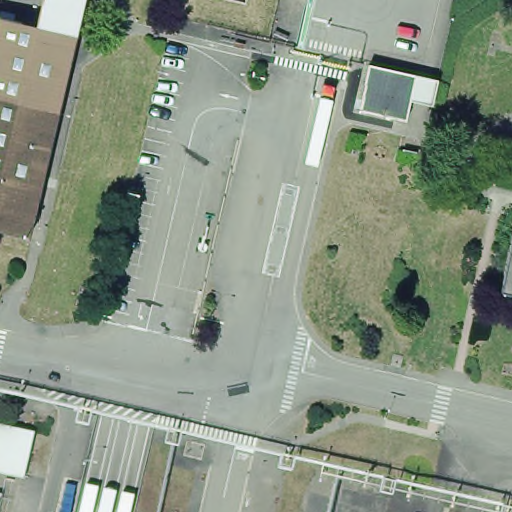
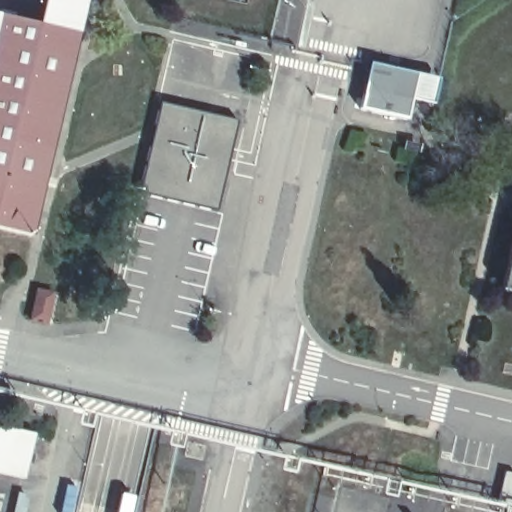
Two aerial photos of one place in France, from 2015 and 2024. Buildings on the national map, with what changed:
unchanged [(0,229),(0,15),(36,23),(42,0),(84,0),(29,236),(0,229)]
unchanged [(359,109),(369,64),(408,73),(407,79),(413,80),(404,119),(359,109)]
new [(238,120),(219,212),(141,194),(163,103),(238,120)]
unchanged [(512,296),(494,293),(512,214),(512,296)]
unchanged [(1,447),(13,451),(17,429),(28,432),(18,477),(0,473),(0,426),(5,427),(1,447)]
unchanged [(153,443),(137,512),(72,512),(91,429),(153,443)]
unchanged [(6,487),(1,512),(0,512),(0,486),(6,487)]
new [(31,496),(27,512),(12,512),(16,492),(31,496)]

